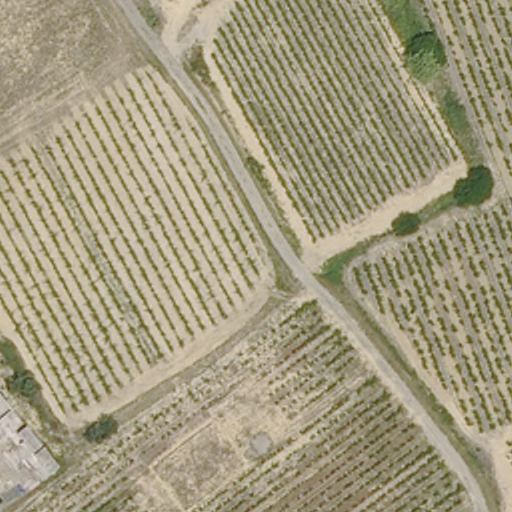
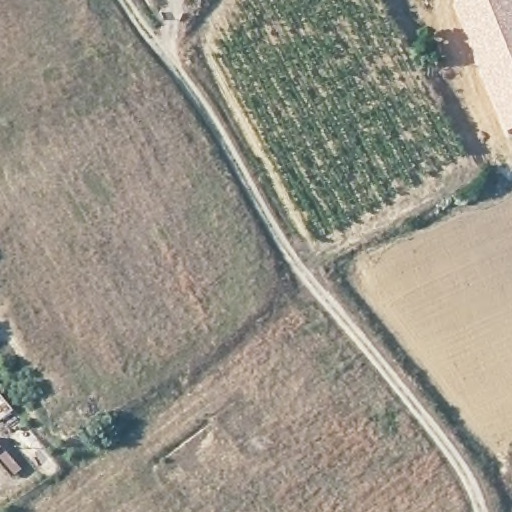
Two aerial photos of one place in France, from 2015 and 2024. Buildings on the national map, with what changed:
new [(506,136),(452,3),(459,0),(512,0),(512,134),(506,136)]

